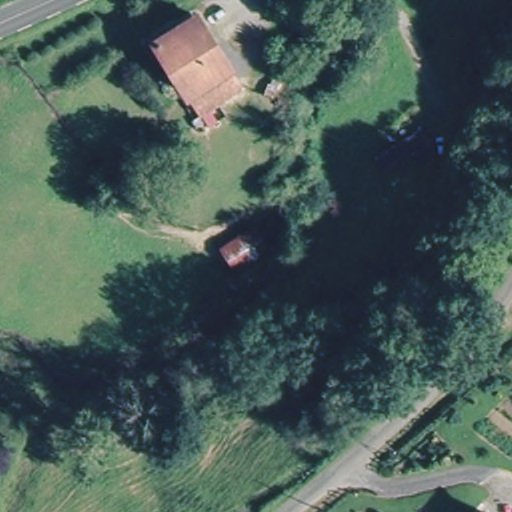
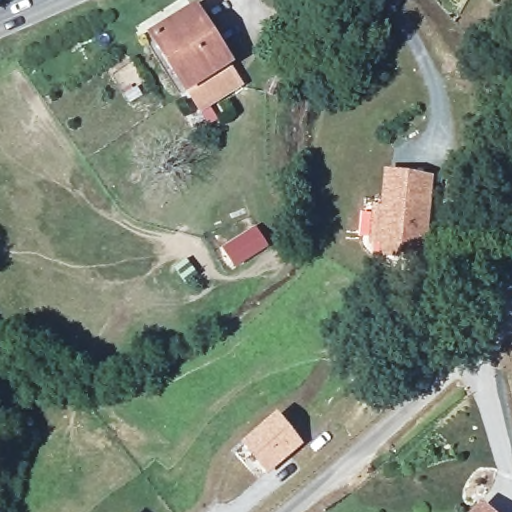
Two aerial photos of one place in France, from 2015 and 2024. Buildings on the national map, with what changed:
unchanged [(193,118),(182,96),(148,37),(193,8),(229,67),(239,89),(193,118)]
unchanged [(431,151),(384,174),(373,153),(419,128),(431,151)]
new [(434,176),(426,263),(376,261),(377,248),(368,247),(370,206),(381,207),(384,174),(434,176)]
unchanged [(271,255),(236,276),(215,244),(250,219),(271,255)]
new [(275,418),(298,443),(272,467),(249,441),(275,418)]

